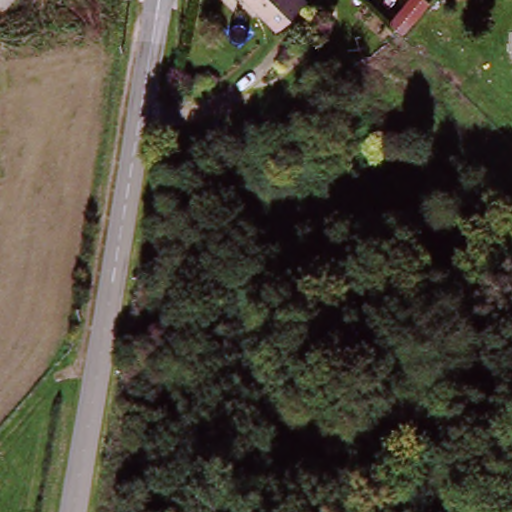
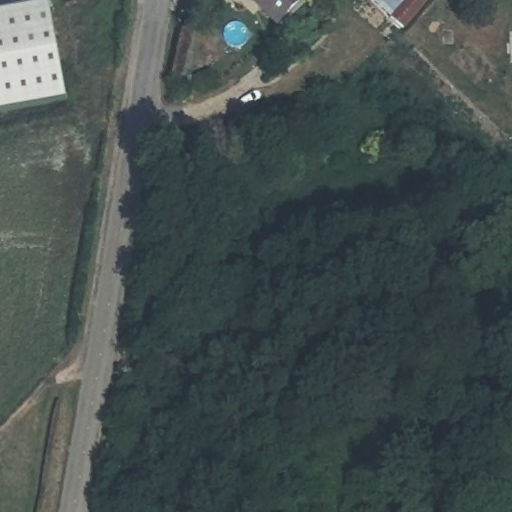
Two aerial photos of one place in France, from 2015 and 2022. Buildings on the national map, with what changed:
unchanged [(251,0),(303,0),(278,25),(251,0)]
new [(67,101),(0,113),(0,13),(50,4),(67,101)]

